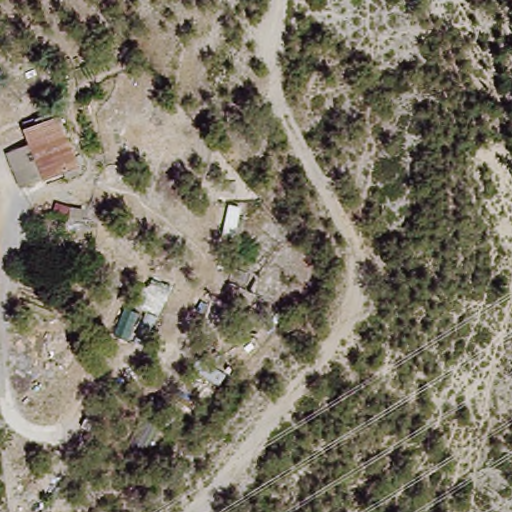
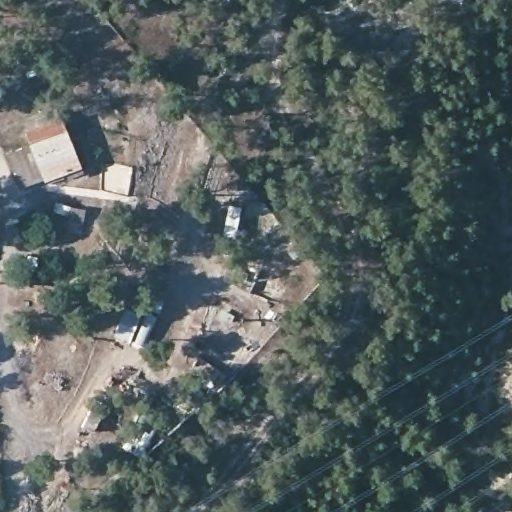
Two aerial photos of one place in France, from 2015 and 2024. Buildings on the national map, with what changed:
unchanged [(60,115),(80,166),(43,179),(24,130),(60,115)]

